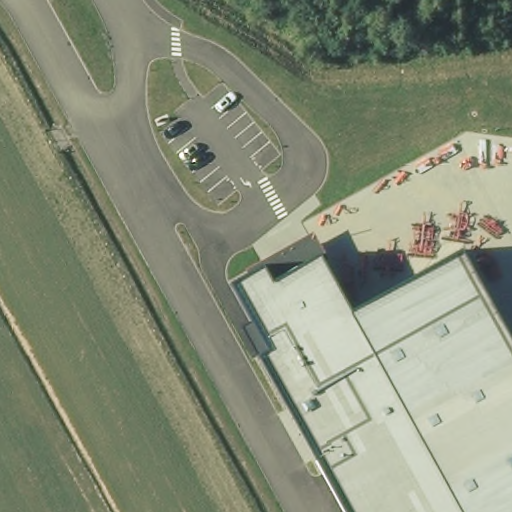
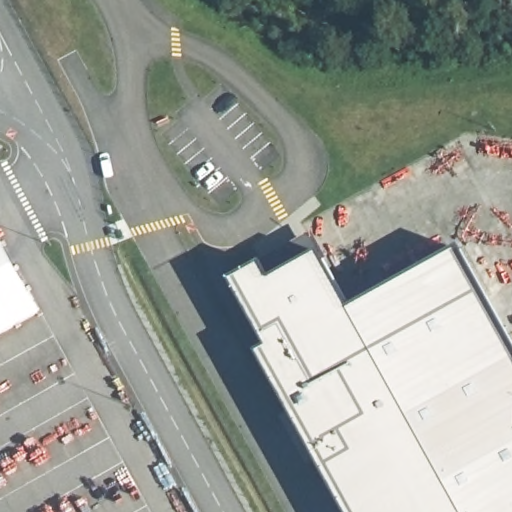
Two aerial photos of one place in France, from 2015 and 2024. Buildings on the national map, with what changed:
unchanged [(262,357),(269,352),(234,289),(250,279),(245,271),(307,237),(320,260),(352,312),(460,251),(512,344),(512,512),(346,512),(262,357)]
new [(42,311),(0,335),(0,240),(42,311)]

